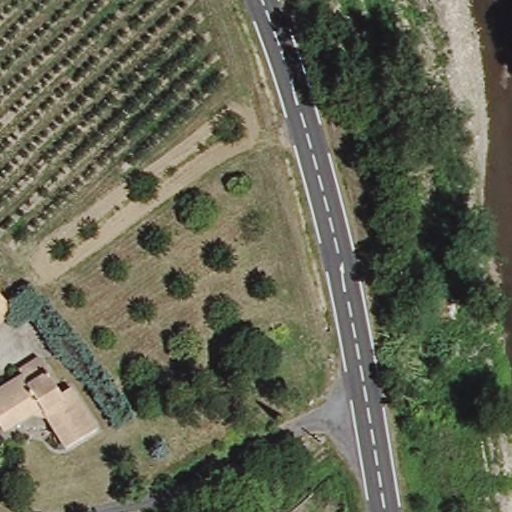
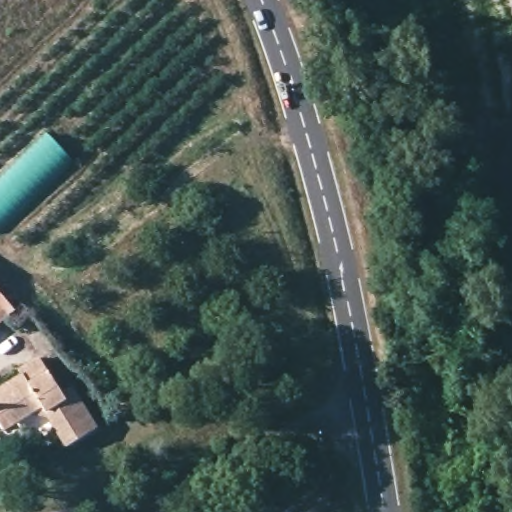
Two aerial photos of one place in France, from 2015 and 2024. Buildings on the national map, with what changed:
new [(0,229),(0,176),(52,131),(78,162),(0,229)]
unchanged [(4,298),(0,301),(0,293),(4,298)]
unchanged [(4,298),(16,312),(0,326),(0,301),(4,298)]
unchanged [(2,422),(0,419),(0,391),(23,376),(22,369),(44,356),(66,389),(79,385),(103,424),(69,443),(56,425),(47,411),(24,423),(8,432),(2,422)]

